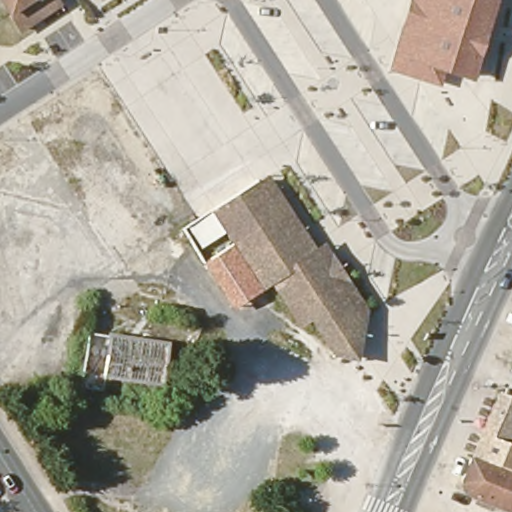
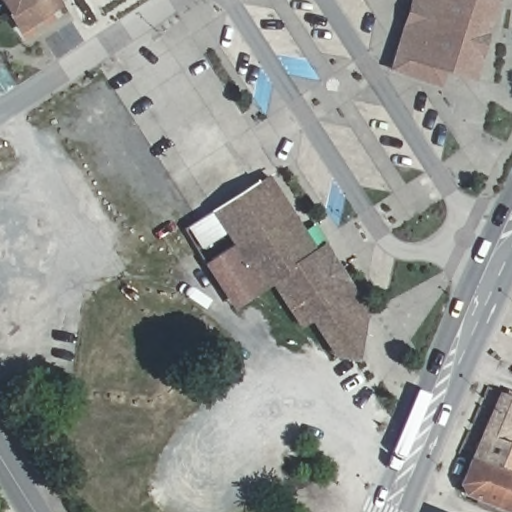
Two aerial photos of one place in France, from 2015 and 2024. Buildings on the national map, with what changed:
unchanged [(59,1),(21,26),(4,0),(59,0),(59,1)]
unchanged [(408,0),(436,0),(415,59),(445,68),(440,88),(390,73),(408,0)]
unchanged [(436,0),(491,0),(491,2),(493,2),(472,77),(445,68),(415,59),(436,0)]
unchanged [(318,246),(317,247),(308,252),(258,177),(268,171),(318,246)]
unchanged [(258,177),(308,252),(317,247),(360,313),(356,332),(337,345),(316,311),(309,315),(302,320),(278,284),(273,277),(264,282),(217,210),(214,206),(258,177)]
unchanged [(217,210),(264,282),(273,277),(278,284),(235,311),(206,263),(231,247),(225,237),(201,250),(187,230),(217,210)]
unchanged [(327,241),(370,305),(364,331),(358,358),(333,352),(309,315),(316,311),(337,345),(356,332),(360,313),(317,247),(318,246),(327,241)]
demolished [(88,328),(168,340),(162,381),(107,373),(105,388),(80,385),(88,328)]
unchanged [(482,432),(483,433),(501,392),(512,396),(512,458),(509,466),(473,452),(482,432)]
unchanged [(55,433),(49,431),(52,425),(58,427),(55,433)]
unchanged [(466,490),(466,489),(463,485),(465,483),(463,484),(462,480),(467,466),(468,466),(467,465),(472,455),(512,471),(512,507),(470,491),(466,490)]

